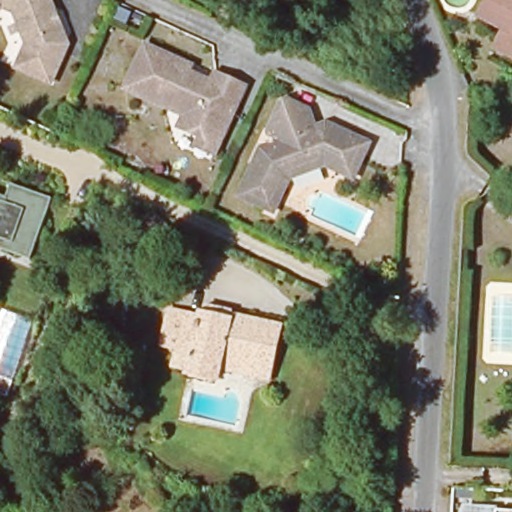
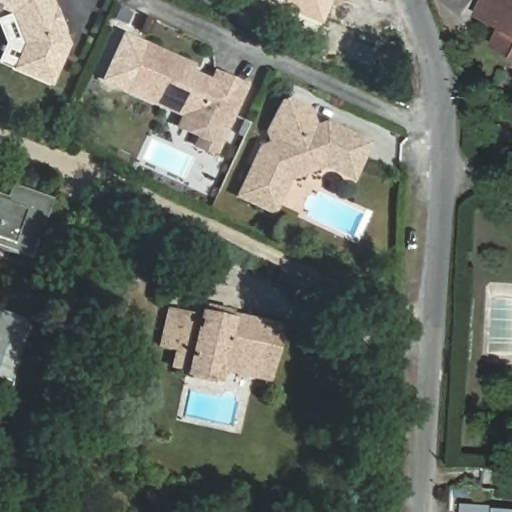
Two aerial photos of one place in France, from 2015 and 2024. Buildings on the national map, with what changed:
unchanged [(51,83),(16,67),(26,44),(14,12),(0,6),(0,0),(50,0),(67,45),(51,83)]
new [(321,25),(261,0),(332,0),(321,25)]
unchanged [(479,16),(488,0),(512,0),(512,34),(479,16)]
unchanged [(193,151),(197,142),(176,132),(181,121),(122,94),(142,50),(189,71),(186,77),(192,80),(197,82),(204,85),(209,88),(212,80),(242,92),(215,150),(211,160),(193,151)]
unchanged [(286,173),(271,206),(236,191),(258,144),(270,139),(265,128),(278,99),(285,96),(305,105),(311,124),(323,119),(335,125),(358,135),(365,139),(361,147),(360,150),(353,165),(350,173),(320,160),(286,173)]
unchanged [(9,184),(51,199),(30,260),(0,249),(0,201),(3,202),(9,184)]
unchanged [(177,227),(170,239),(176,245),(156,262),(130,235),(139,225),(156,206),(177,227)]
unchanged [(267,374),(219,365),(215,385),(180,378),(181,374),(169,371),(172,355),(157,352),(159,344),(170,346),(177,312),(207,318),(209,310),(277,324),(267,374)]
unchanged [(0,396),(0,318),(2,312),(33,321),(9,398),(0,396)]
unchanged [(470,512),(470,507),(498,509),(498,512),(470,512)]
unchanged [(512,510),(512,512),(498,512),(498,509),(512,510)]

